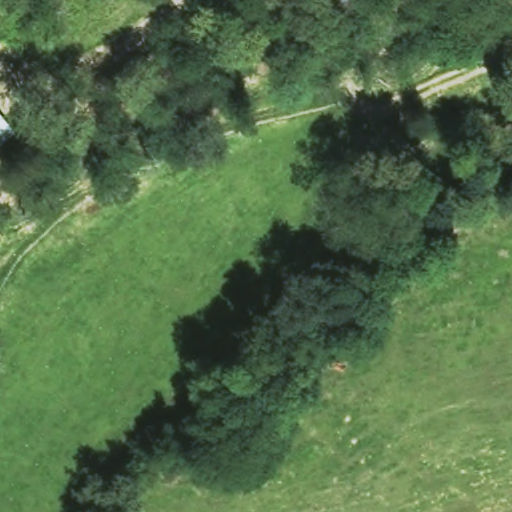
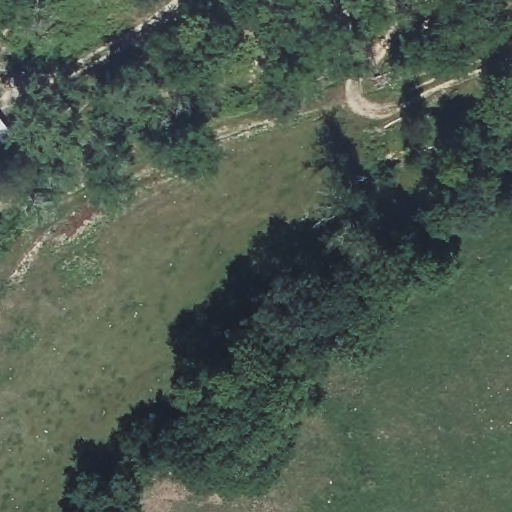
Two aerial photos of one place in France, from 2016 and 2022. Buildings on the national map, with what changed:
unchanged [(0,139),(0,114),(11,128),(0,139)]

